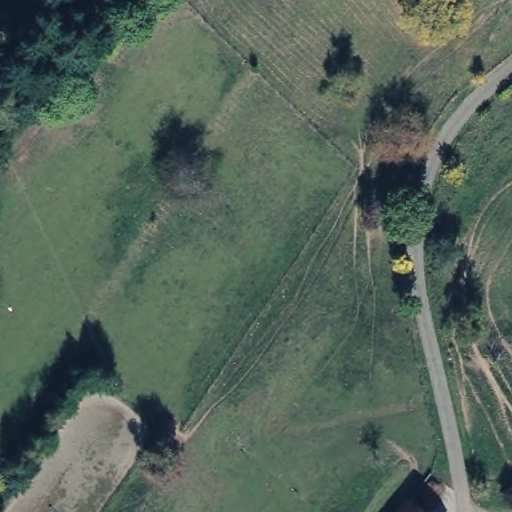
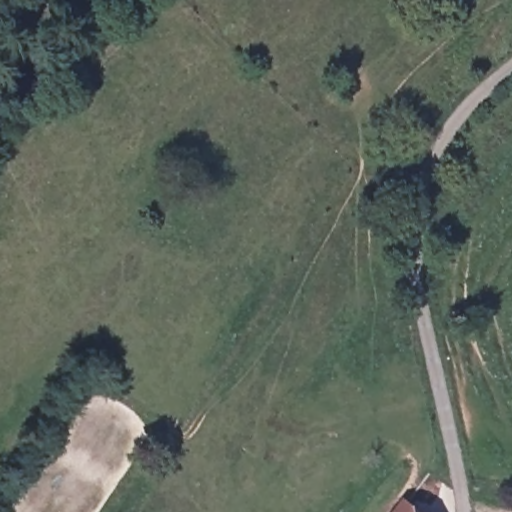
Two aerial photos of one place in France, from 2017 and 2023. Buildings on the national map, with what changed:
unchanged [(403,512),(412,503),(421,512),(403,512)]

